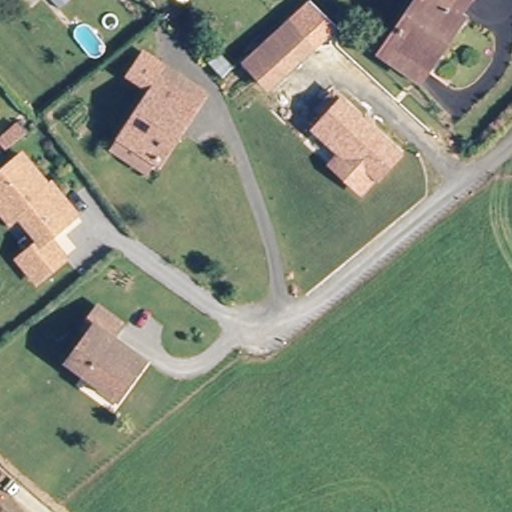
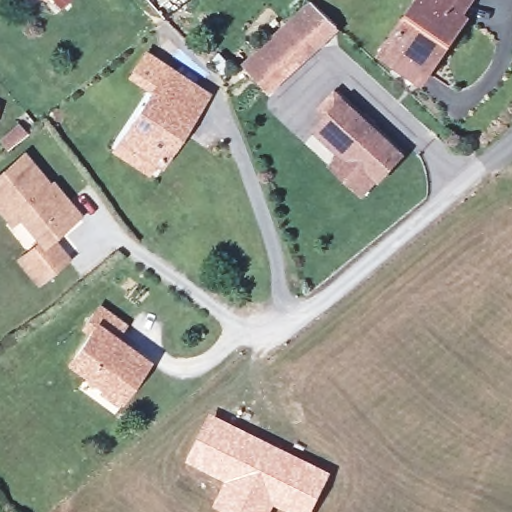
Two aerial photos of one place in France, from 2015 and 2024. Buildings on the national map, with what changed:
unchanged [(389,42),(421,0),(470,0),(468,2),(476,8),(428,71),(389,42)]
unchanged [(332,35),(270,88),(247,61),(271,40),(308,6),(332,35)]
unchanged [(115,149),(124,137),(155,92),(133,76),(149,53),(169,68),(168,71),(184,83),(207,99),(197,113),(161,163),(157,160),(148,172),(115,149)]
unchanged [(371,187),(341,159),(349,150),(323,126),(336,113),(327,105),(341,90),(406,149),(371,187)]
unchanged [(26,153),(54,189),(57,186),(78,212),(51,234),(69,255),(41,278),(23,256),(43,239),(20,212),(12,219),(0,204),(0,175),(26,153)]
unchanged [(119,331),(109,344),(143,368),(118,402),(68,367),(79,351),(70,345),(95,314),(119,331)]
new [(331,471),(311,512),(295,512),(274,502),(269,512),(232,512),(215,504),(226,480),(187,460),(211,412),(331,471)]

